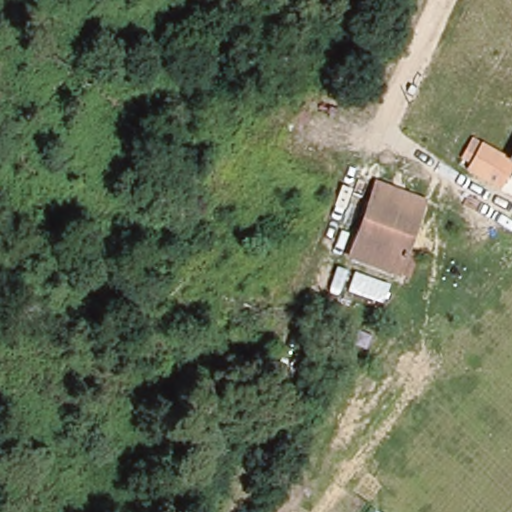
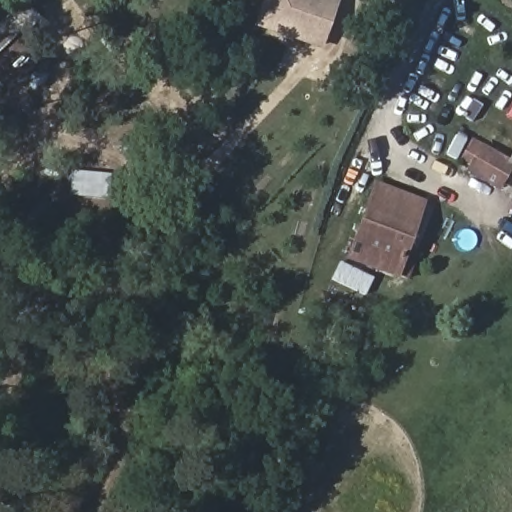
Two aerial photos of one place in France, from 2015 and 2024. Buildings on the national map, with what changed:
new [(267,0),(338,0),(322,46),(279,31),(259,24),(265,4),(267,0)]
unchanged [(483,183),(485,175),(461,160),(474,138),(512,160),(512,199),(483,183)]
unchanged [(379,181),(426,199),(399,266),(362,251),(356,268),(346,265),(379,181)]

